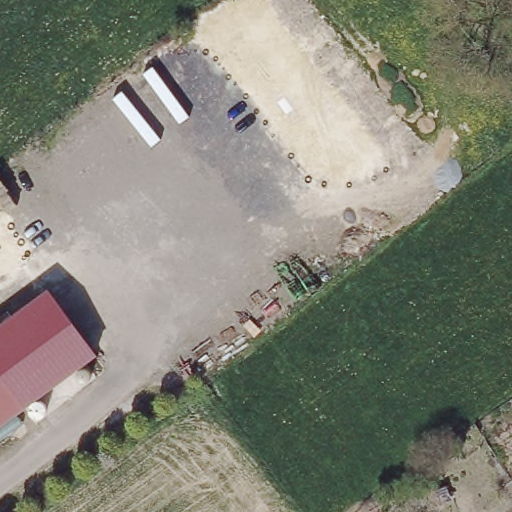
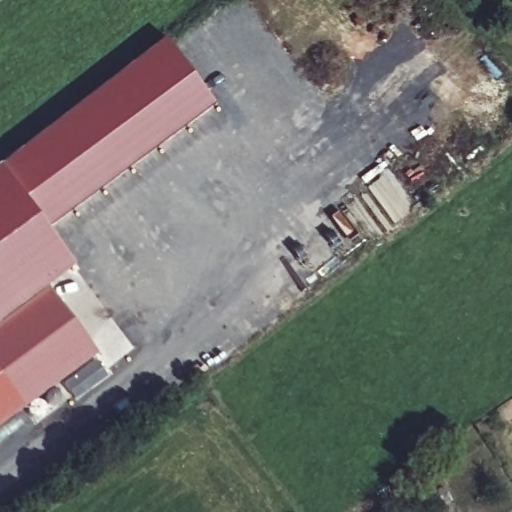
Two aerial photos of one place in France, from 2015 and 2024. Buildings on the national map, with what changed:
new [(0,165),(167,37),(216,105),(46,229),(76,269),(48,292),(0,328),(0,165)]
unchanged [(0,430),(0,328),(48,292),(98,358),(0,430)]

